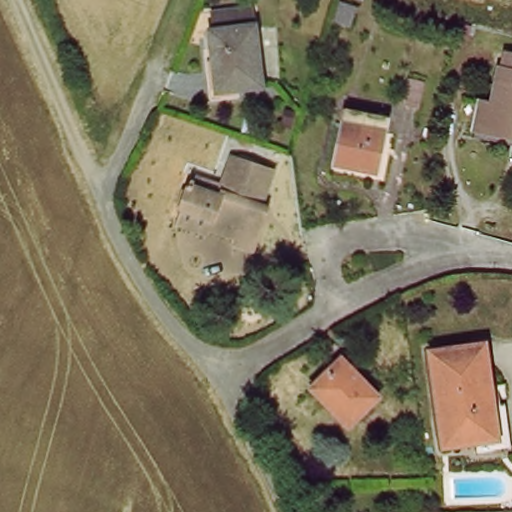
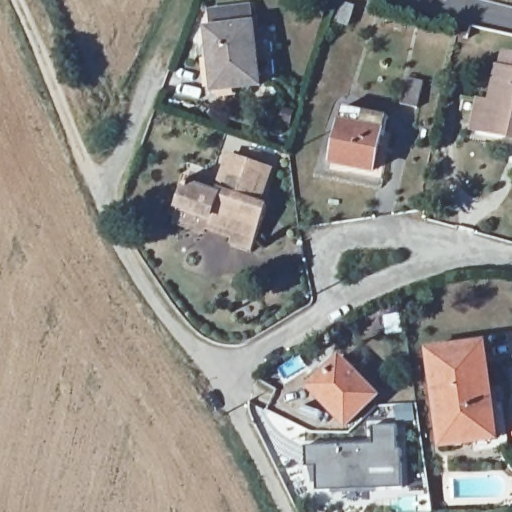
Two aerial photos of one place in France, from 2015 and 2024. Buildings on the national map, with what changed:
unchanged [(341,0),(343,0),(357,5),(350,26),(334,20),(341,0)]
unchanged [(266,95),(221,100),(214,39),(220,39),(218,21),(257,17),(259,34),(266,95)]
unchanged [(469,37),(457,35),(460,21),(472,25),(469,37)]
unchanged [(497,107),(505,73),(508,73),(511,57),(512,58),(512,141),(491,137),(479,134),(485,105),(497,107)]
unchanged [(418,108),(402,104),(409,78),(425,82),(418,108)]
unchanged [(384,146),(379,145),(374,171),(351,166),(352,163),(332,159),(343,107),(390,116),(384,146)]
unchanged [(180,219),(185,204),(194,175),(197,176),(199,170),(226,179),(235,152),(276,165),(265,199),(274,202),(270,214),(260,244),(239,237),(241,230),(213,221),(210,229),(180,219)]
unchanged [(475,442),(443,447),(430,351),(485,344),(493,406),(501,405),(505,438),(506,445),(476,450),(475,442)]
unchanged [(319,384),(345,358),(383,396),(353,426),(335,408),(315,387),(319,384)]
new [(414,401),(417,420),(394,422),(391,403),(414,401)]
new [(371,440),(370,424),(397,422),(403,488),(316,492),(314,468),(306,468),(306,443),(371,440)]

